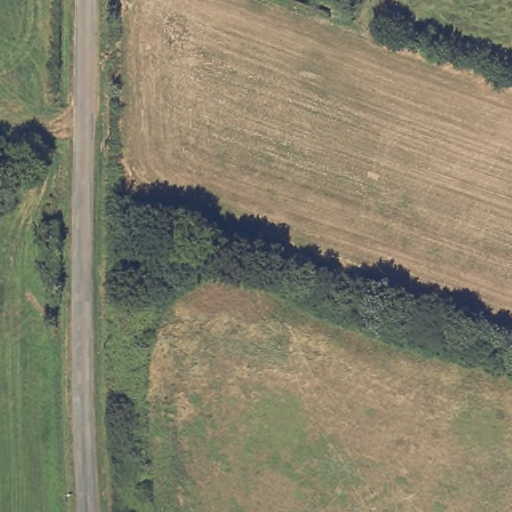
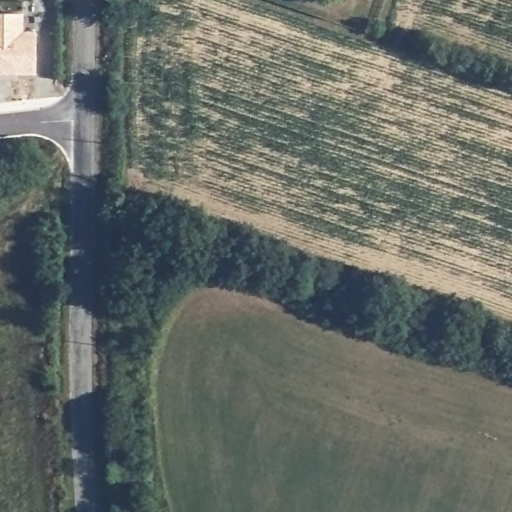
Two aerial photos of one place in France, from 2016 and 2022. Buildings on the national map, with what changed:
new [(0,15),(21,15),(20,32),(35,33),(34,75),(0,74),(0,15)]

